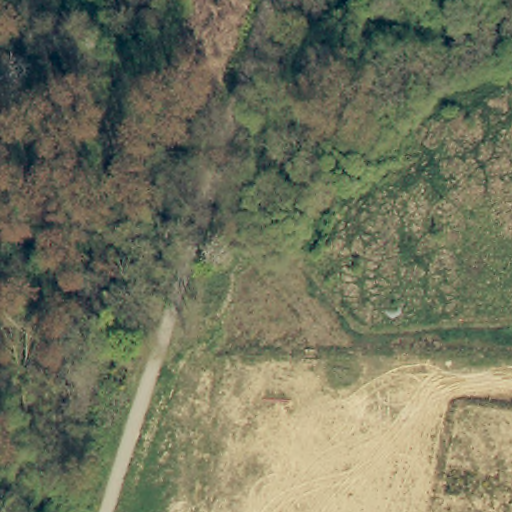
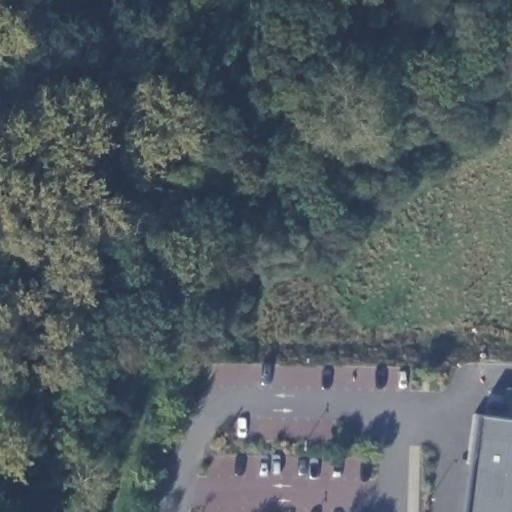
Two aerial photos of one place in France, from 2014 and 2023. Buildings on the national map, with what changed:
new [(512,512),(462,512),(474,422),(512,426),(512,512)]

